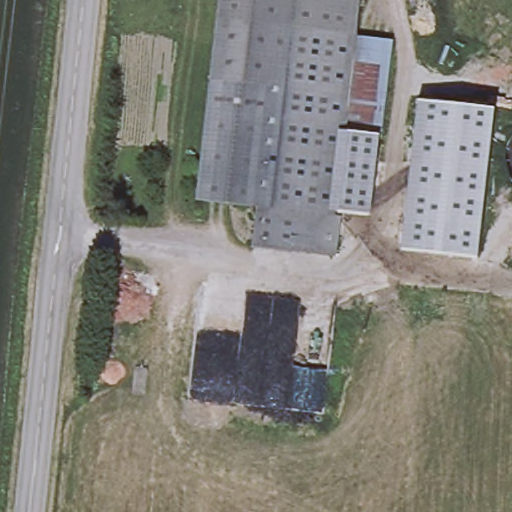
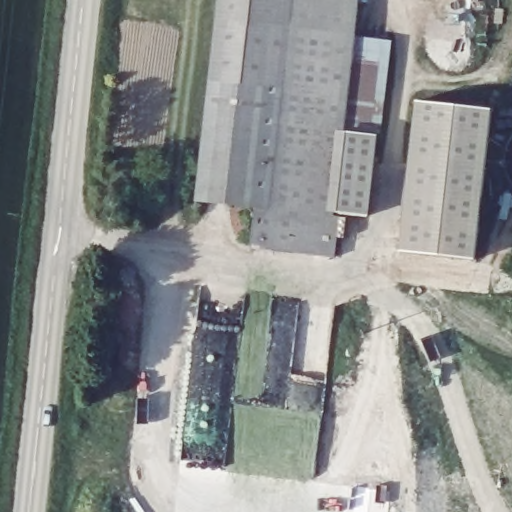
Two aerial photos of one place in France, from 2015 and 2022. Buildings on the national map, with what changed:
unchanged [(378,137),(371,215),(341,213),(336,257),(251,248),(255,210),(193,203),(217,0),(359,0),(355,38),(391,42),(383,138),(378,137)]
unchanged [(490,111),(474,260),(401,250),(417,102),(490,111)]

